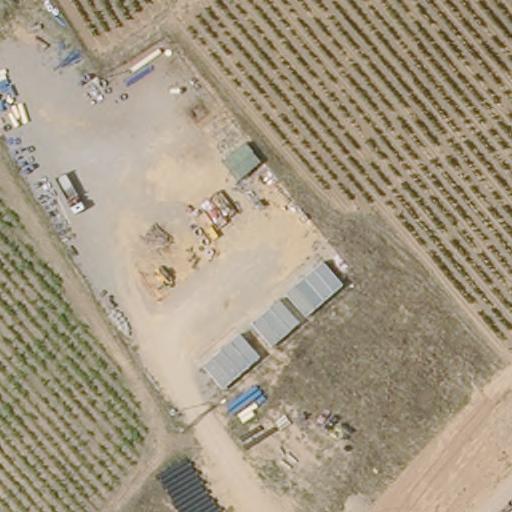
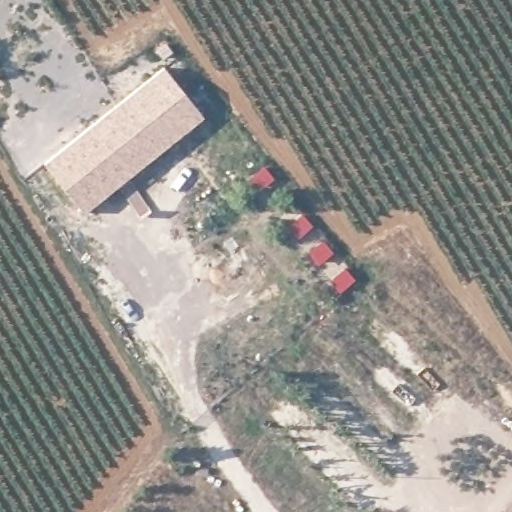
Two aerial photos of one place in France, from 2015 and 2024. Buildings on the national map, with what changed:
new [(203,117),(134,174),(142,182),(122,197),(116,187),(84,213),(43,165),(163,68),(203,117)]

